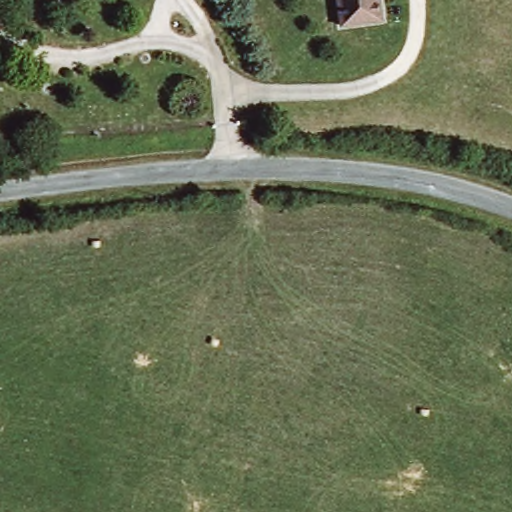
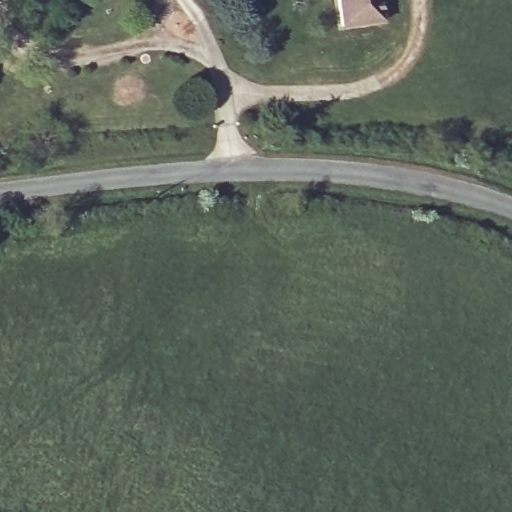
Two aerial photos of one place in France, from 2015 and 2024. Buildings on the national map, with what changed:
unchanged [(337,23),(335,0),(378,0),(380,19),(337,23)]

